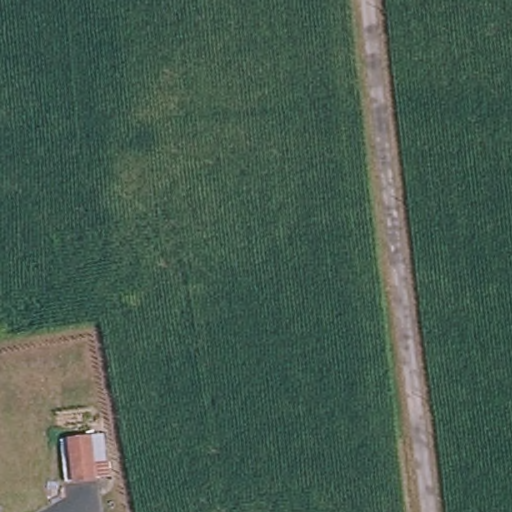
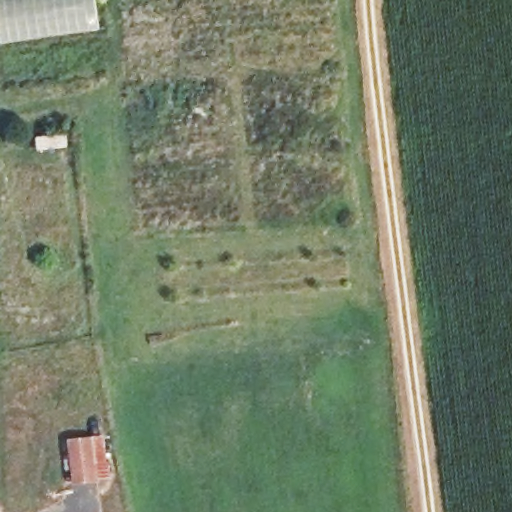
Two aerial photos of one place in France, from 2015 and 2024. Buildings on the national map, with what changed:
new [(21,3),(27,2),(27,0),(95,0),(99,30),(0,44),(0,6),(7,6),(21,3)]
unchanged [(105,434),(112,479),(74,487),(71,439),(105,434)]

